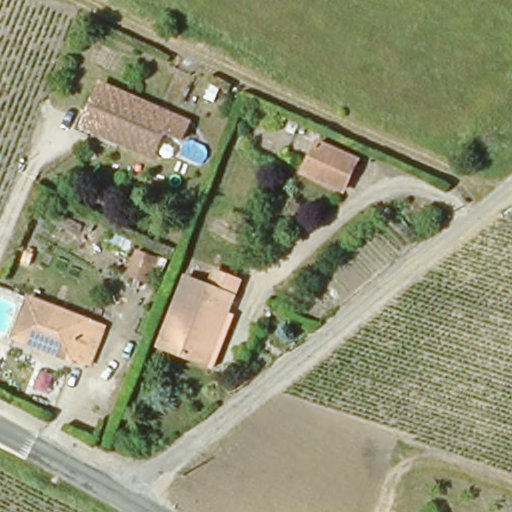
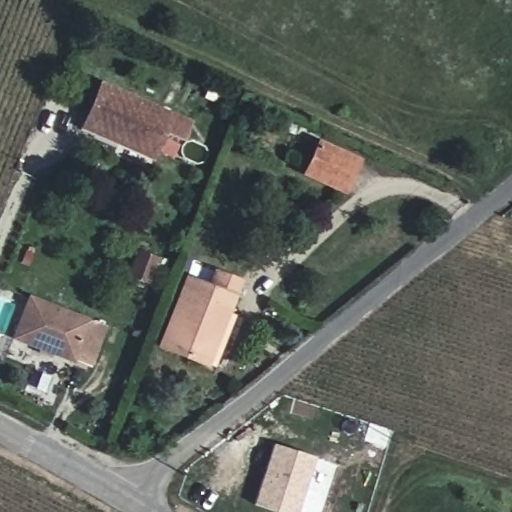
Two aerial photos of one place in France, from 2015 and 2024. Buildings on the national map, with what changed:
unchanged [(85,121),(101,86),(189,128),(179,149),(166,141),(151,166),(116,148),(80,129),(85,121)]
unchanged [(358,160),(344,192),(304,175),(318,143),(358,160)]
unchanged [(160,254),(149,281),(131,273),(144,246),(160,254)]
unchanged [(201,289),(206,275),(234,285),(223,315),(230,318),(210,370),(155,349),(180,281),(201,289)]
unchanged [(104,327),(90,370),(14,345),(27,303),(104,327)]
new [(276,512),(253,505),(273,444),(313,457),(295,512),(276,512)]

